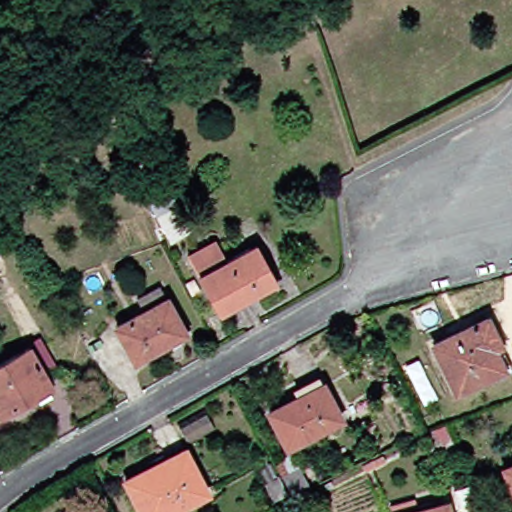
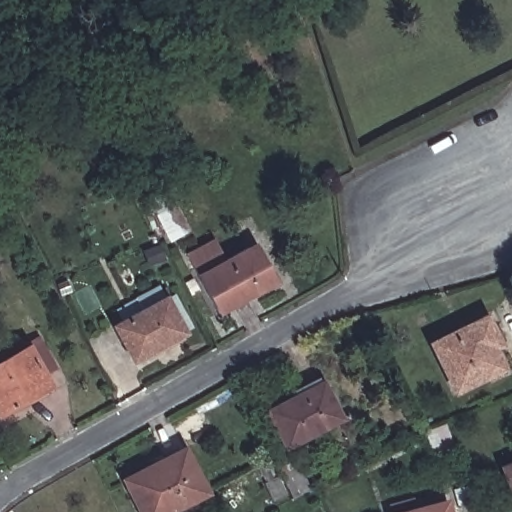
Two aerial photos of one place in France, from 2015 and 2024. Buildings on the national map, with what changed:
unchanged [(190,231),(170,241),(150,201),(169,191),(190,231)]
unchanged [(272,288),(215,319),(193,280),(182,260),(210,245),(221,265),(251,249),(272,288)]
unchanged [(150,356),(147,351),(130,360),(111,326),(140,311),(133,298),(154,286),(161,300),(180,333),(177,334),(180,339),(150,356)]
unchanged [(486,318),(511,370),(493,378),(491,374),(455,392),(432,344),(486,318)]
unchanged [(0,417),(0,367),(25,353),(46,391),(0,417)]
unchanged [(297,441),(279,408),(332,380),(350,414),(297,441)]
unchanged [(303,492),(292,470),(285,456),(299,449),(306,462),(318,485),(303,492)]
unchanged [(202,498),(176,512),(133,512),(120,486),(180,455),(202,498)]
unchanged [(512,465),(512,493),(503,468),(512,465)]
unchanged [(283,495),(275,479),(287,473),(295,489),(283,495)]
unchanged [(390,512),(415,505),(416,512),(391,512),(390,512)]
unchanged [(447,512),(433,512),(446,508),(447,512)]

